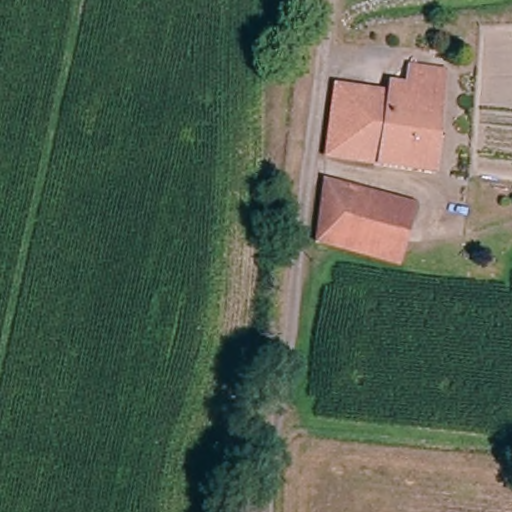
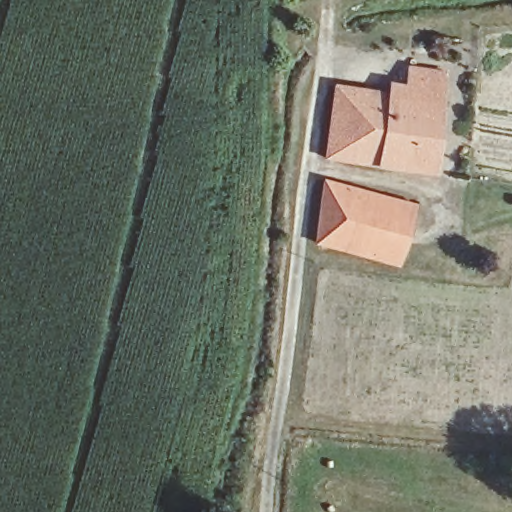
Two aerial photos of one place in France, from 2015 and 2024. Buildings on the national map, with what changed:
unchanged [(397,105),(400,90),(417,93),(416,71),(449,77),(434,181),(328,164),(339,97),(386,104),(397,105)]
unchanged [(317,249),(311,248),(322,191),(323,186),(417,214),(401,273),(317,249)]

